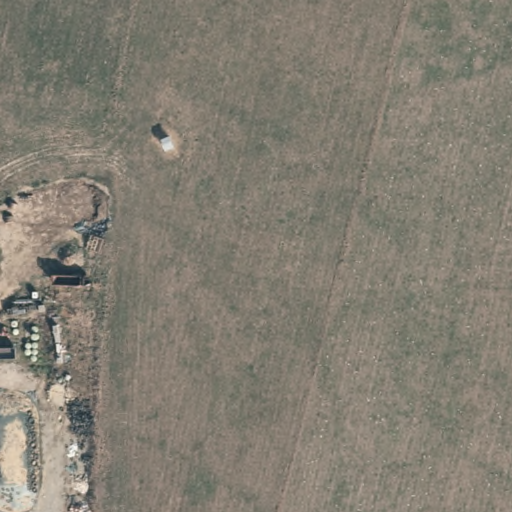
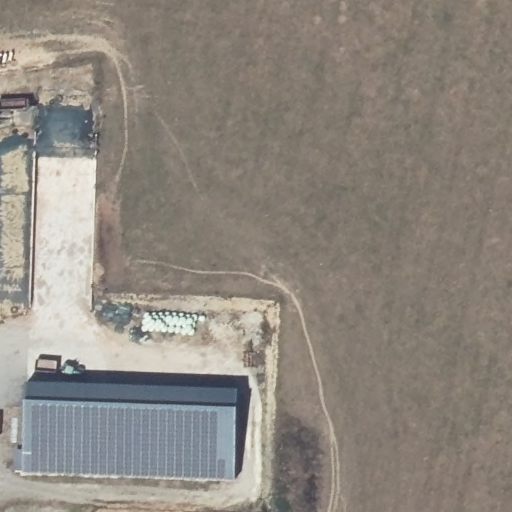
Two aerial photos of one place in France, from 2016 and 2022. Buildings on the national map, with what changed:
new [(237,479),(24,473),(27,381),(238,389),(237,479)]

